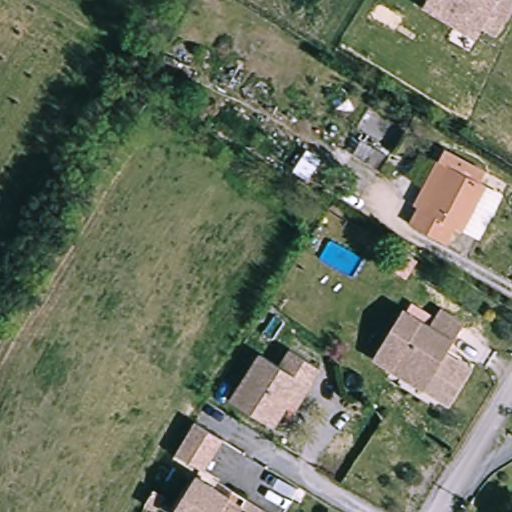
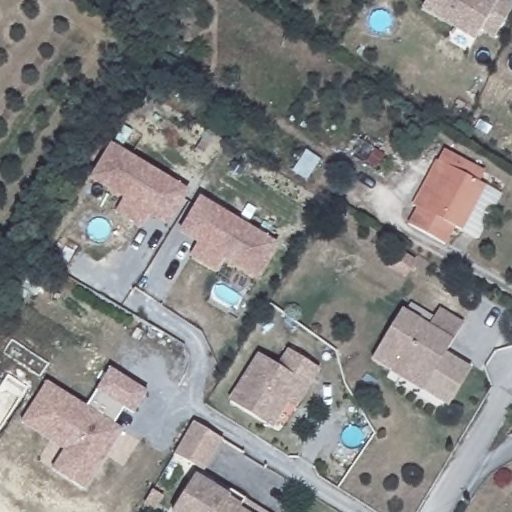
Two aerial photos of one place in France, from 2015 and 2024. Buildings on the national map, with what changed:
unchanged [(512,10),(498,36),(484,28),(478,39),(424,10),(429,0),(496,0),(498,1),(498,0),(509,0),(512,2),(512,10)]
unchanged [(463,231),(448,222),(441,218),(431,236),(393,214),(403,197),(413,203),(436,162),(422,154),(430,141),(467,162),(461,174),(472,180),(487,189),(463,231)]
new [(150,216),(143,228),(115,212),(123,199),(91,179),(111,146),(188,193),(175,215),(167,226),(150,216)]
new [(182,232),(189,221),(203,199),(280,245),(260,279),(227,259),(219,272),(191,255),(200,242),(182,232)]
unchanged [(425,388),(374,361),(401,309),(427,324),(436,308),(462,323),(425,388)]
new [(472,369),(451,404),(425,388),(445,352),(472,369)]
unchanged [(297,406),(280,433),(243,411),(275,359),(291,369),(300,355),(330,373),(320,389),(310,383),(297,406)]
new [(50,385),(90,408),(111,370),(149,391),(137,411),(118,400),(108,418),(127,429),(93,490),(58,471),(70,450),(27,426),(50,385)]
unchanged [(215,439),(194,473),(173,460),(194,426),(215,439)]
unchanged [(176,508),(199,471),(233,493),(237,486),(247,492),(279,512),(182,512),(176,508)]
unchanged [(161,503),(156,512),(146,512),(142,510),(151,496),(161,503)]

